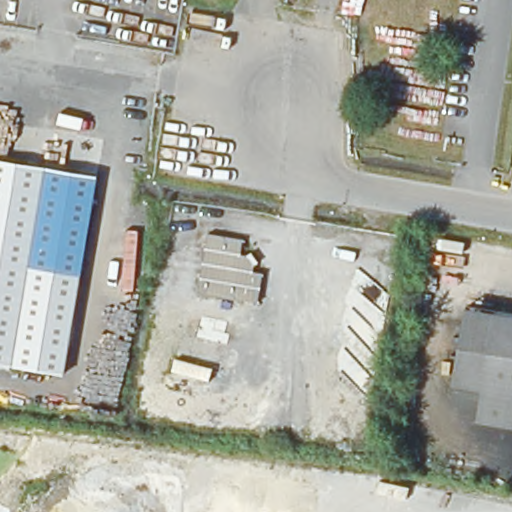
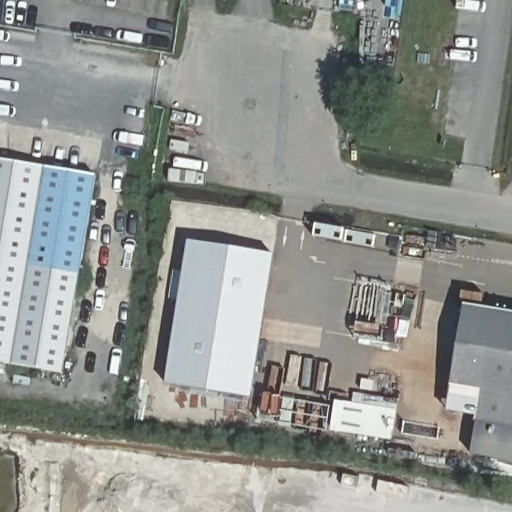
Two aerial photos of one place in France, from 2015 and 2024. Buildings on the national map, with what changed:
unchanged [(80,278),(64,376),(0,368),(0,160),(44,169),(26,271),(80,278)]
unchanged [(80,278),(26,271),(44,169),(99,176),(80,278)]
demolished [(241,251),(262,277),(258,301),(200,292),(209,236),(245,240),(241,251)]
new [(276,252),(256,398),(169,385),(189,240),(276,252)]
unchanged [(481,395),(452,392),(462,311),(492,315),(481,395)]
unchanged [(512,317),(512,399),(481,395),(492,315),(512,317)]
new [(335,401),(353,403),(354,395),(399,401),(393,441),(331,432),(335,401)]
unchanged [(512,399),(512,464),(473,457),(477,427),(481,395),(512,399)]
demolished [(442,479),(438,499),(389,491),(392,471),(442,479)]

